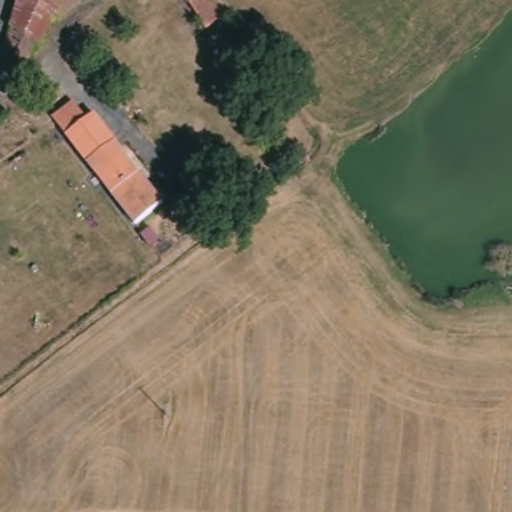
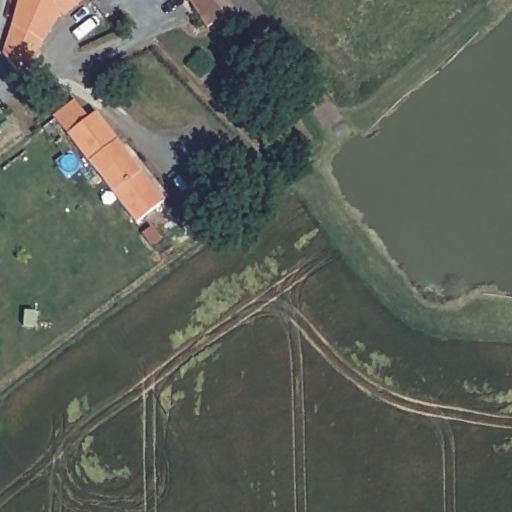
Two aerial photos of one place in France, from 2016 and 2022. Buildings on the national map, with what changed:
unchanged [(20,0),(79,0),(70,10),(65,15),(61,14),(40,47),(34,55),(32,57),(20,76),(5,55),(9,39),(13,26),(20,0)]
unchanged [(198,11),(195,6),(191,2),(190,0),(212,0),(212,1),(198,11)]
unchanged [(71,135),(97,117),(118,148),(121,147),(141,178),(112,201),(80,155),(83,152),(71,135)]
unchanged [(162,211),(134,231),(122,217),(112,201),(141,178),(162,211)]

